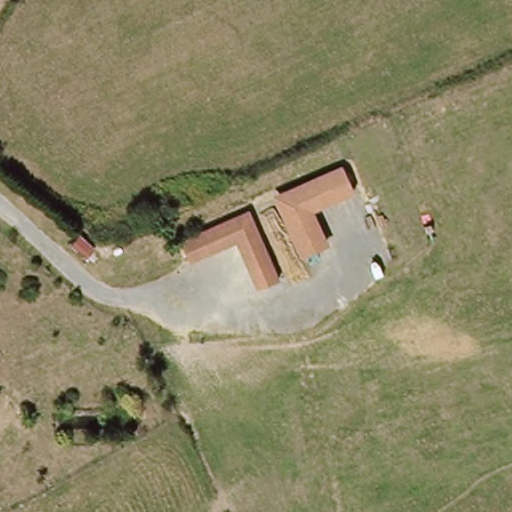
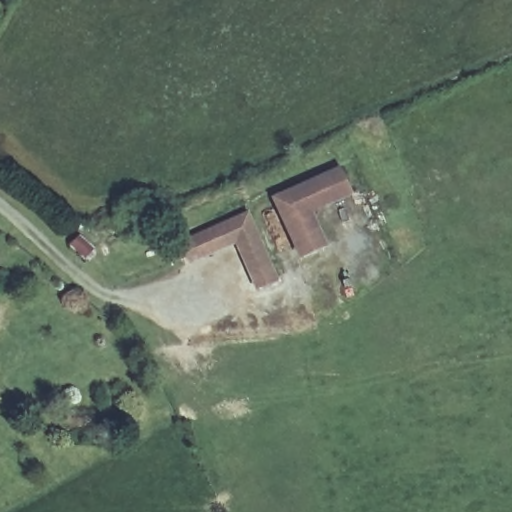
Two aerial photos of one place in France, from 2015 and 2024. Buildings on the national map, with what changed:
unchanged [(314,213),(330,246),(300,259),(272,197),(342,165),(355,195),(314,213)]
unchanged [(181,240),(250,209),(280,279),(264,285),(241,234),(189,257),(181,240)]
unchanged [(86,257),(73,243),(82,233),(96,248),(86,257)]

